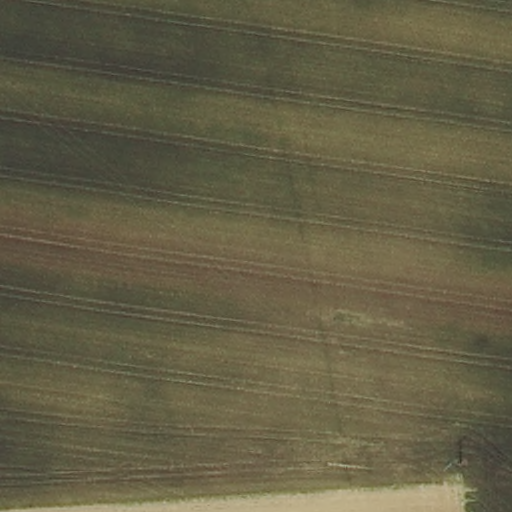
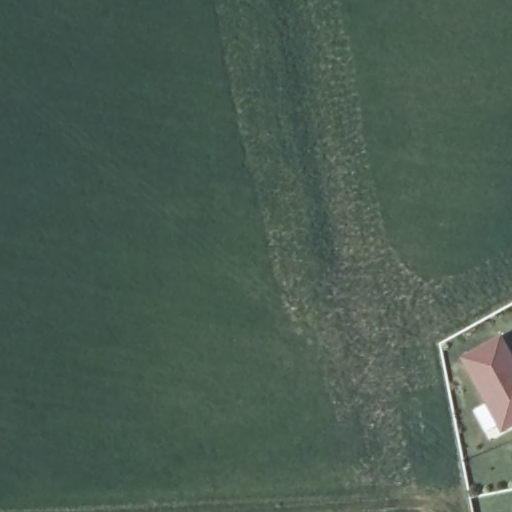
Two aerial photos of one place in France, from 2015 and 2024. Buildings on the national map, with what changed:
new [(512,365),(512,425),(495,434),(481,405),(472,409),(450,361),(497,336),(512,365)]

